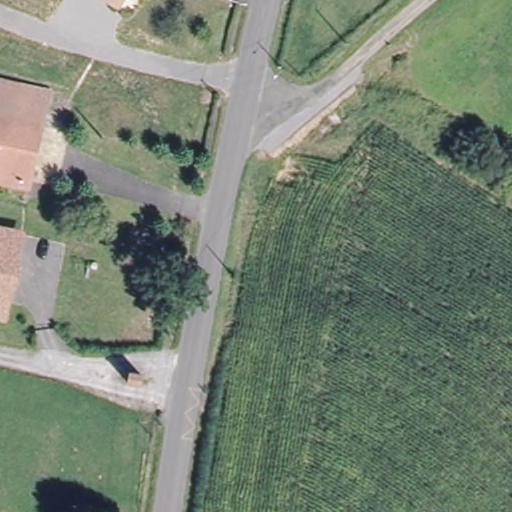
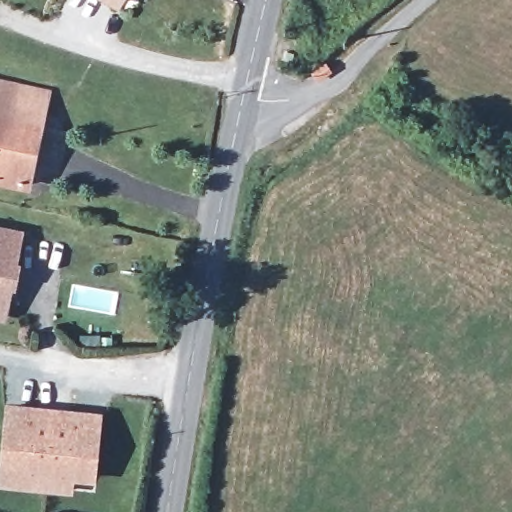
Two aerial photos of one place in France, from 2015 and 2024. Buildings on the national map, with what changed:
unchanged [(0,180),(0,79),(46,90),(39,126),(26,186),(0,180)]
unchanged [(4,310),(0,309),(0,230),(21,235),(4,310)]
new [(101,414),(95,481),(74,479),(72,495),(0,487),(0,466),(6,401),(101,414)]

